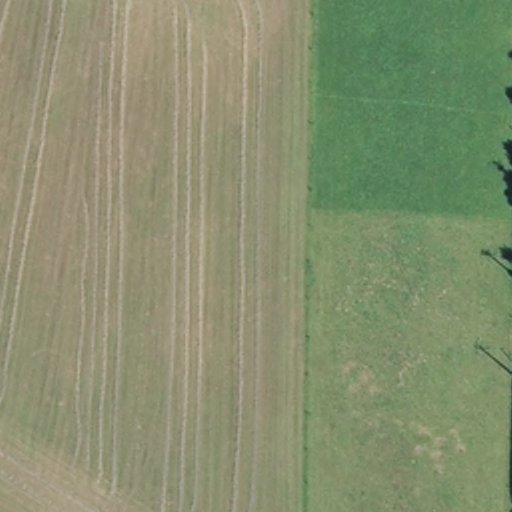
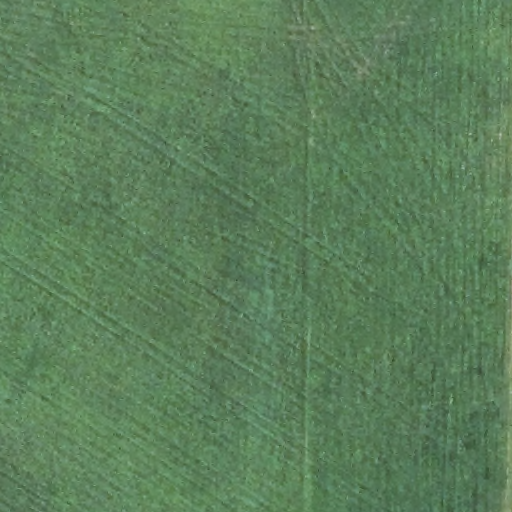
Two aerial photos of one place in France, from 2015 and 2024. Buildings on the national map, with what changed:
[]

